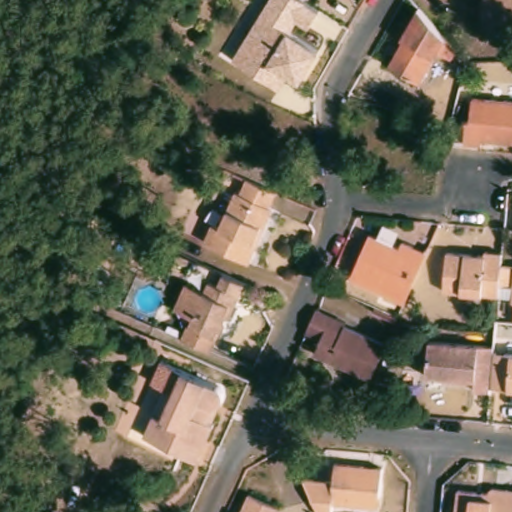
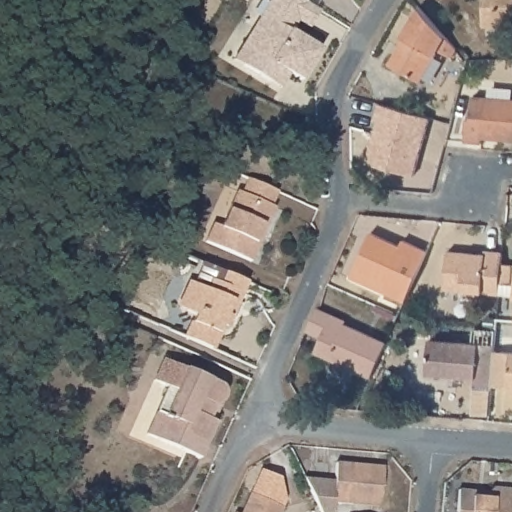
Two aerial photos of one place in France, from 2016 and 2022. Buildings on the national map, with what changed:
unchanged [(268,79),(242,63),(234,58),(247,37),(269,0),(306,0),(320,8),(310,25),(297,17),(290,29),(320,48),(301,78),(289,71),(280,86),(268,79)]
unchanged [(512,26),(489,25),(489,0),(512,0),(512,26)]
unchanged [(406,38),(425,6),(460,48),(455,58),(441,51),(423,82),(395,66),(410,39),(406,38)]
unchanged [(478,96),(512,99),(512,139),(486,137),(486,142),(470,141),(471,118),(476,118),(478,96)]
new [(378,120),(375,119),(379,103),(430,117),(413,175),(366,162),(378,120)]
unchanged [(257,261),(211,240),(220,219),(228,222),(241,192),(245,194),(254,175),(283,189),(277,204),(281,206),(272,226),(265,243),(257,261)]
unchanged [(410,246),(413,239),(438,250),(415,301),(360,277),(380,233),(410,246)]
unchanged [(448,289),(452,251),(490,253),(490,249),(507,251),(506,264),(512,265),(512,294),(503,293),(448,289)]
unchanged [(190,288),(200,284),(212,289),(217,278),(227,282),(231,271),(253,280),(243,303),(239,301),(218,348),(191,336),(201,313),(190,308),(186,297),(190,288)]
unchanged [(311,331),(322,308),(351,321),(350,324),(391,342),(375,378),(318,352),(325,337),(311,331)]
unchanged [(498,346),(498,353),(495,387),(495,390),(478,389),(479,379),(430,375),(433,340),(498,346)]
unchanged [(512,389),(495,387),(498,353),(512,354),(512,389)]
unchanged [(170,359),(223,383),(229,386),(231,390),(231,394),(230,398),(226,402),(221,404),(215,419),(222,423),(206,460),(152,436),(162,412),(173,388),(160,382),(170,359)]
unchanged [(357,505),(337,503),(340,465),(387,468),(385,497),(384,507),(357,505)]
unchanged [(488,490),(492,487),(512,489),(512,512),(455,512),(456,491),(488,493),(488,490)]
unchanged [(280,506),(277,512),(240,512),(249,492),(280,506)]

